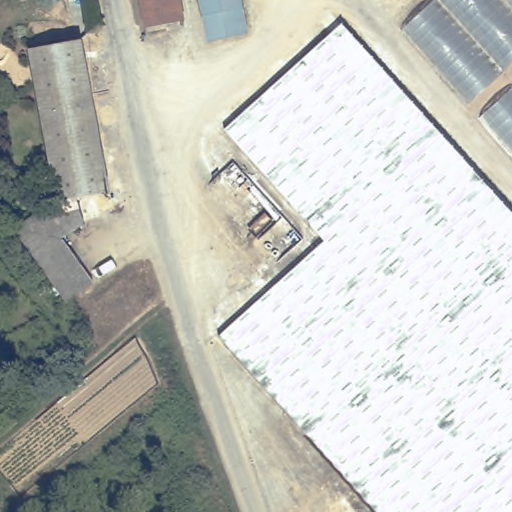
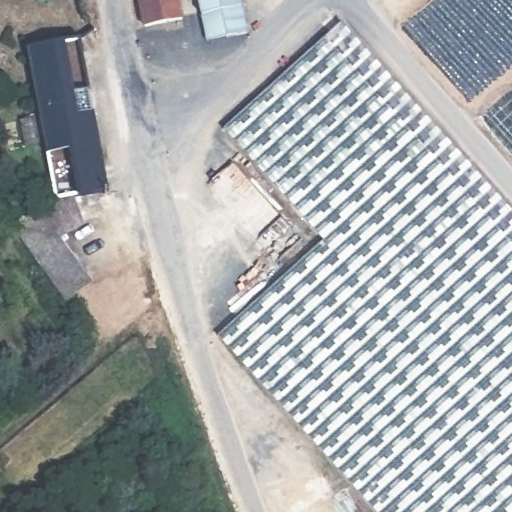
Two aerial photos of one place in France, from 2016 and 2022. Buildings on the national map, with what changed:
unchanged [(152,31),(146,0),(183,0),(187,25),(152,31)]
unchanged [(203,0),(243,0),(250,36),(239,38),(211,44),(206,18),(203,0)]
demolished [(397,25),(427,0),(512,0),(512,154),(397,25)]
unchanged [(221,340),(327,246),(228,133),(346,28),(512,212),(512,512),(377,512),(221,340)]
unchanged [(46,129),(32,55),(84,46),(101,138),(112,195),(80,201),(86,228),(81,232),(62,204),(46,129)]
unchanged [(62,204),(81,232),(66,243),(99,289),(71,310),(14,230),(62,204)]

